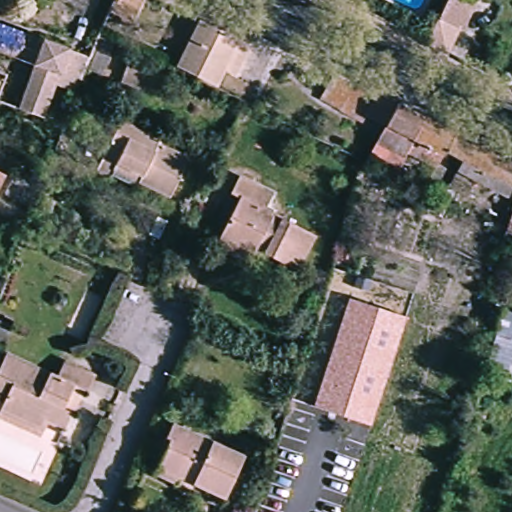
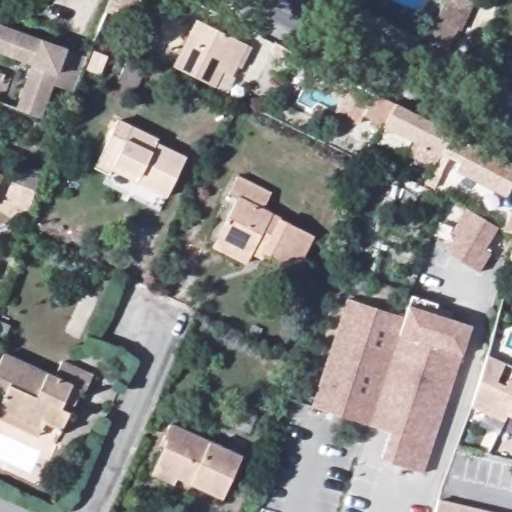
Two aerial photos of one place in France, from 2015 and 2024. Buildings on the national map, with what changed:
unchanged [(115,0),(142,0),(132,24),(109,16),(115,0)]
unchanged [(451,47),(427,34),(443,0),(472,0),(451,47)]
unchanged [(221,68),(213,85),(207,83),(172,65),(193,21),(194,18),(236,37),(246,41),(243,47),(231,73),(221,68)]
unchanged [(79,78),(72,95),(53,88),(40,120),(17,112),(33,68),(0,56),(0,28),(86,60),(79,78)]
unchanged [(148,69),(138,98),(112,92),(125,63),(148,69)]
unchanged [(323,97),(329,87),(337,69),(400,102),(387,123),(368,113),(365,120),(323,97)]
unchanged [(460,133),(450,150),(440,165),(411,149),(407,157),(377,141),(387,123),(400,102),(460,133)]
unchanged [(154,140),(151,145),(179,158),(161,197),(131,183),(134,175),(109,163),(103,175),(89,169),(112,121),(154,140)]
unchanged [(512,160),(512,189),(472,168),(475,163),(450,150),(460,133),(512,160)]
unchanged [(8,180),(0,196),(0,176),(8,180)]
unchanged [(211,247),(216,237),(236,199),(226,195),(235,178),(268,197),(260,211),(308,236),(290,270),(261,255),(259,260),(248,254),(242,263),(211,247)]
demolished [(512,203),(512,244),(500,238),(512,203)]
new [(443,246),(439,243),(453,218),(485,237),(472,259),(477,263),(466,282),(433,263),(443,246)]
unchanged [(350,297),(408,317),(371,424),(315,406),(350,297)]
new [(412,306),(413,297),(438,306),(437,314),(473,326),(463,357),(425,474),(380,460),(390,430),(371,424),(401,337),(408,317),(412,306)]
demolished [(512,375),(482,368),(497,312),(512,316),(512,375)]
unchanged [(0,420),(0,406),(2,403),(0,403),(0,364),(4,355),(55,377),(61,362),(92,376),(85,391),(80,389),(62,429),(55,444),(0,420)]
new [(507,424),(472,409),(487,355),(512,367),(512,418),(510,416),(507,424)]
unchanged [(148,467),(152,459),(172,422),(238,454),(219,493),(173,469),(169,477),(148,467)]
unchanged [(471,512),(430,512),(432,503),(471,512)]

